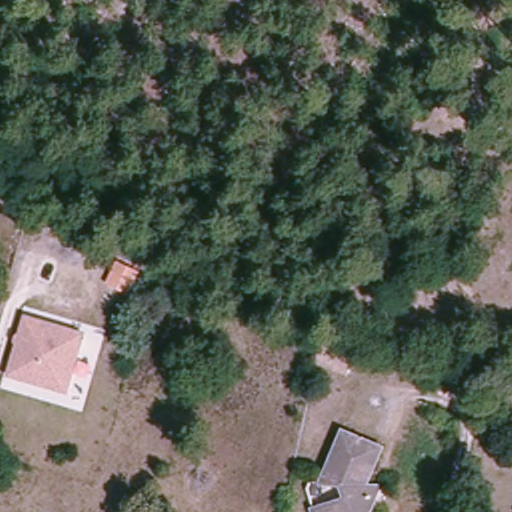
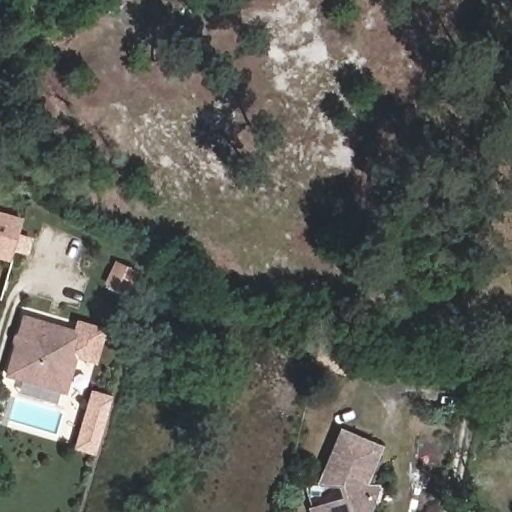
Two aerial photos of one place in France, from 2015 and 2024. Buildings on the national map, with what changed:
new [(0,258),(0,213),(24,220),(12,262),(0,258)]
new [(27,235),(37,239),(34,254),(22,250),(27,235)]
new [(117,261),(137,271),(127,293),(106,283),(117,261)]
unchanged [(70,390),(11,376),(19,345),(17,342),(19,337),(22,335),(26,317),(45,322),(47,327),(55,329),(61,326),(85,332),(70,390)]
unchanged [(361,352),(357,371),(310,363),(313,343),(361,352)]
new [(97,455),(75,450),(91,390),(114,397),(97,455)]
unchanged [(388,495),(387,507),(380,512),(312,512),(305,490),(330,481),(342,435),(381,442),(372,481),(391,486),(388,495)]

